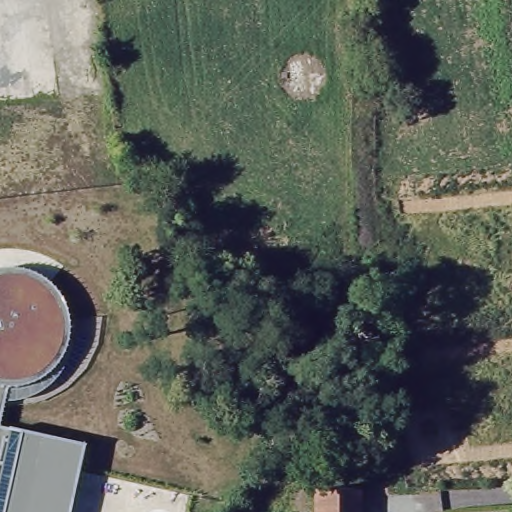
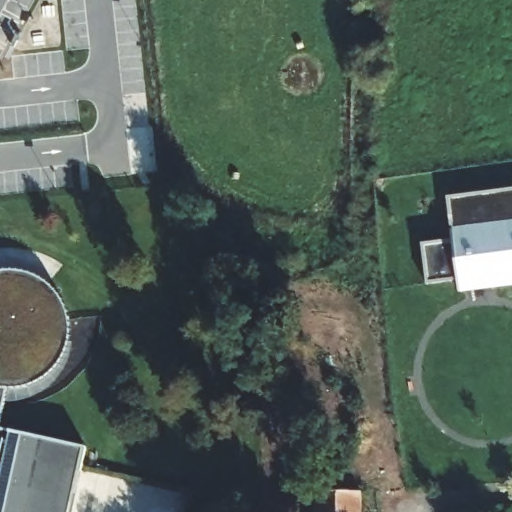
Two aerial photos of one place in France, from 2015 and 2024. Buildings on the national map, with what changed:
new [(457,278),(427,282),(422,244),(453,239),(448,196),(512,189),(512,285),(459,291),(457,278)]
unchanged [(7,269),(22,270),(37,275),(47,281),(60,294),(66,306),(70,320),(70,334),(67,352),(63,368),(57,379),(45,391),(32,397),(15,401),(4,403),(0,423),(0,271),(7,269)]
unchanged [(11,430),(23,432),(85,446),(71,512),(0,512),(0,428),(11,430)]
unchanged [(362,512),(316,512),(316,490),(362,491),(362,512)]

